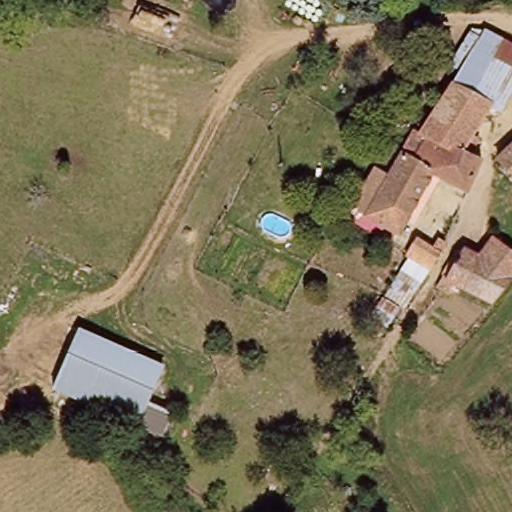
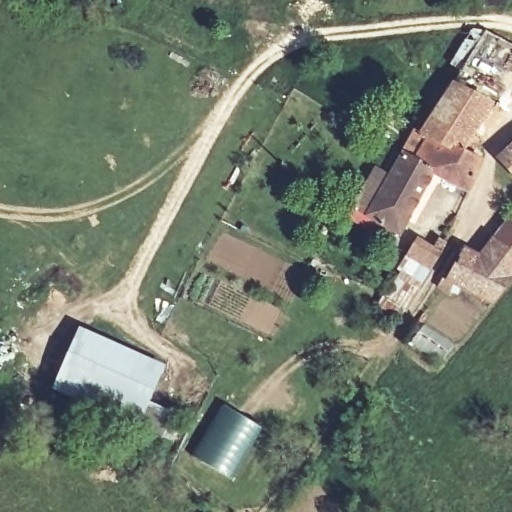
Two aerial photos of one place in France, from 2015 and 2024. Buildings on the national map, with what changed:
unchanged [(512,100),(503,116),(490,109),(451,87),(462,67),(483,32),(512,50),(512,100)]
unchanged [(490,109),(463,150),(460,153),(429,141),(421,136),(437,108),(451,87),(490,109)]
unchanged [(429,141),(460,153),(463,150),(485,160),(472,190),(436,174),(415,165),(429,141)]
unchanged [(510,144),(512,142),(512,174),(497,157),(510,144)]
unchanged [(415,165),(436,174),(432,182),(403,242),(369,225),(388,187),(403,159),(415,165)]
unchanged [(368,233),(351,222),(351,214),(376,167),(393,177),(388,187),(369,225),(377,229),(368,233)]
unchanged [(483,258),(509,215),(512,216),(512,283),(494,305),(454,281),(446,292),(434,287),(442,277),(444,275),(448,277),(466,249),(483,258)]
unchanged [(410,262),(406,260),(419,237),(441,252),(408,312),(386,299),(410,262)]
unchanged [(81,328),(168,366),(152,403),(176,413),(165,437),(141,428),(54,390),(81,328)]
new [(222,402),(262,427),(230,478),(190,453),(222,402)]

